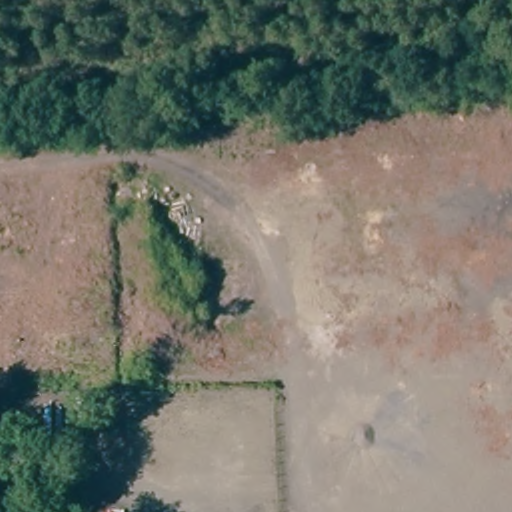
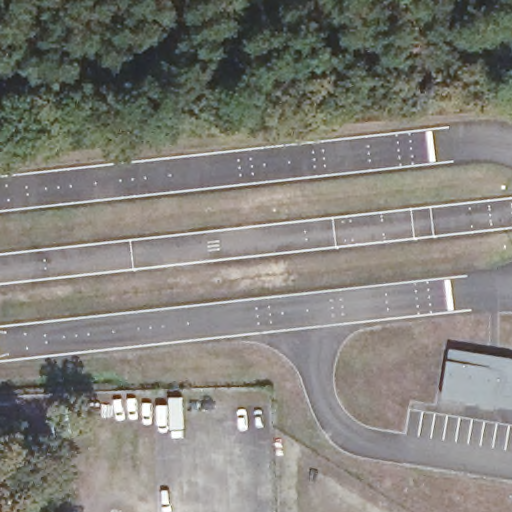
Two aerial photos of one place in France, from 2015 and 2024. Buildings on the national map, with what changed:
new [(512,357),(512,407),(446,398),(452,347),(512,357)]

